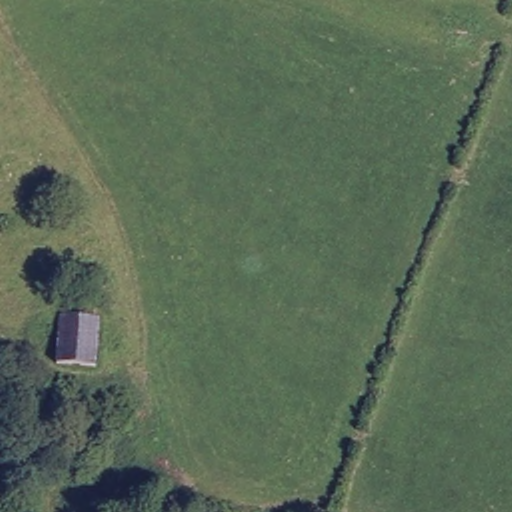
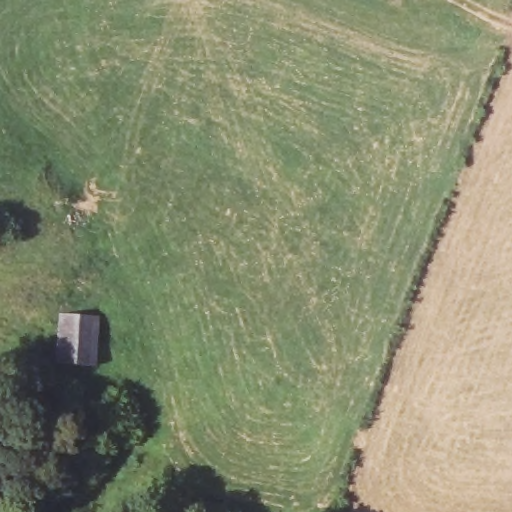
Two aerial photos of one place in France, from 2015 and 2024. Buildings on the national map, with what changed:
unchanged [(64,313),(104,316),(101,365),(59,360),(64,313)]

